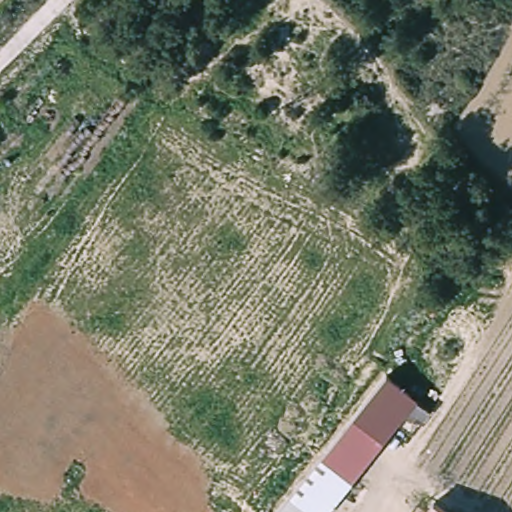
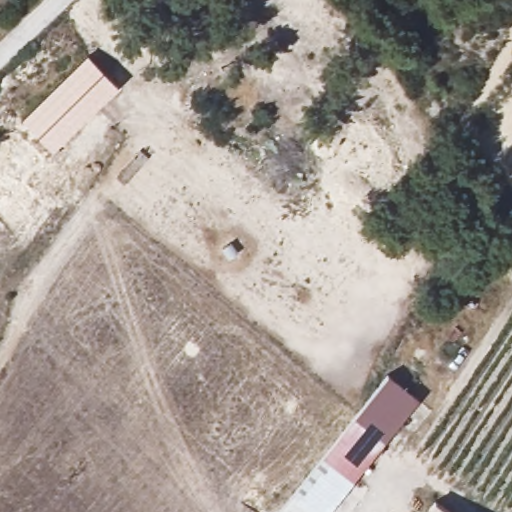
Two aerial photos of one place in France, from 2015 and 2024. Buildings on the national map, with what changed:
new [(87,54),(118,85),(52,149),(22,117),(87,54)]
unchanged [(419,393),(361,474),(335,512),(284,512),(384,370),(419,393)]
unchanged [(451,512),(424,512),(433,500),(451,512)]

